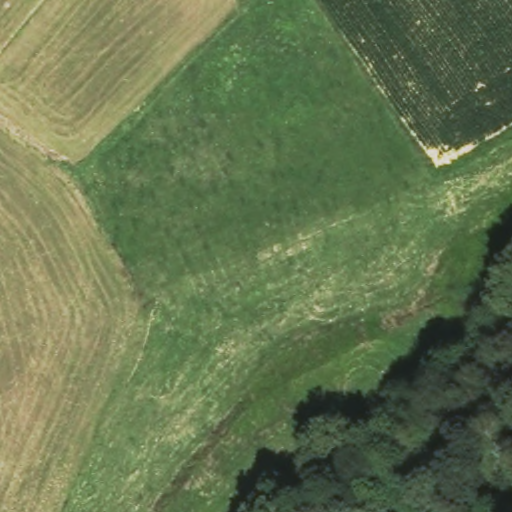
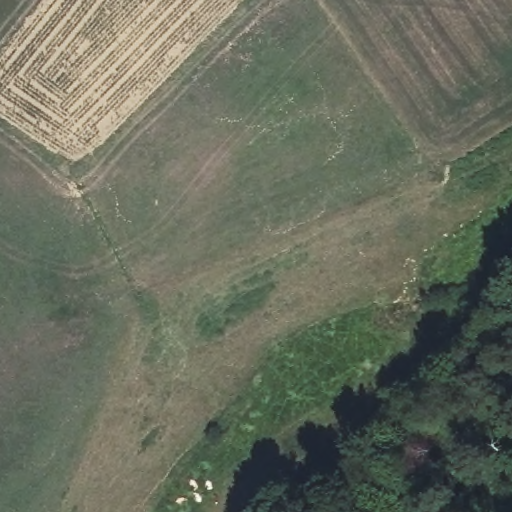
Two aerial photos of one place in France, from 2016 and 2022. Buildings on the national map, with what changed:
[]

